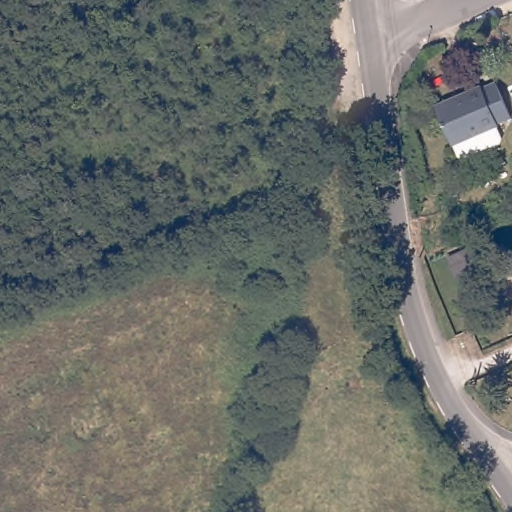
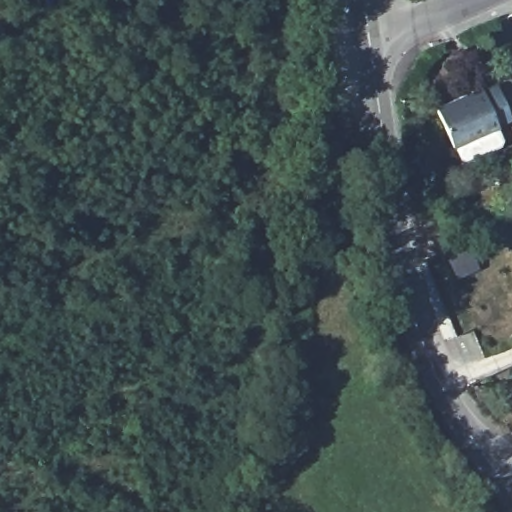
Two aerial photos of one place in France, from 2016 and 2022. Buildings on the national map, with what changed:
unchanged [(481,87),(482,89),(496,83),(511,116),(497,121),(498,125),(452,145),(436,107),(481,87)]
unchanged [(468,249),(476,267),(457,277),(448,258),(468,249)]

